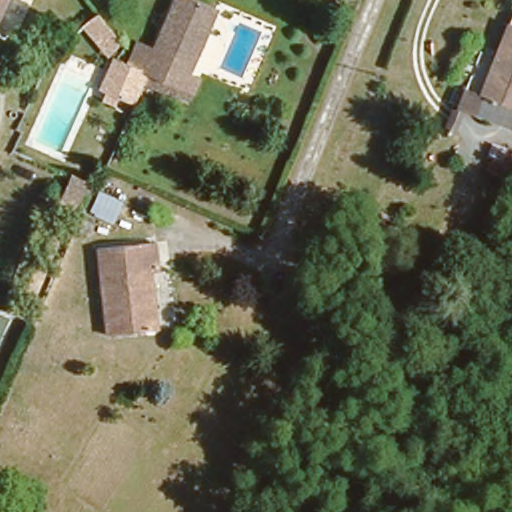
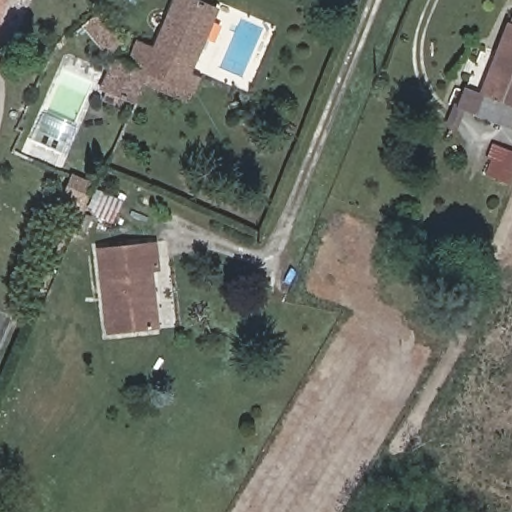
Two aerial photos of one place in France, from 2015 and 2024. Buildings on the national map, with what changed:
unchanged [(153,35),(169,0),(216,0),(187,65),(197,69),(191,84),(141,64),(125,58),(136,29),(153,35)]
unchanged [(93,6),(118,35),(101,48),(81,15),(93,6)]
unchanged [(495,56),(487,52),(501,19),(512,23),(512,105),(505,123),(486,115),(488,109),(471,102),(478,86),(483,89),(495,56)]
unchanged [(126,108),(107,98),(108,95),(101,91),(103,87),(93,83),(114,54),(125,58),(141,64),(126,108)]
unchanged [(505,178),(481,166),(490,138),(512,146),(512,161),(505,178)]
unchanged [(105,187),(96,209),(69,198),(78,177),(105,187)]
unchanged [(101,325),(94,239),(151,234),(154,255),(147,255),(151,298),(153,319),(101,325)]

